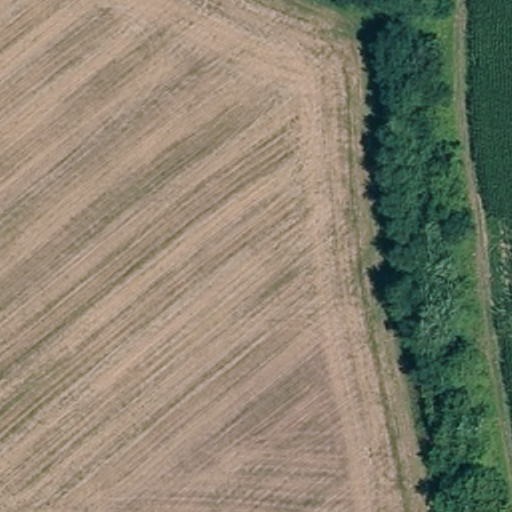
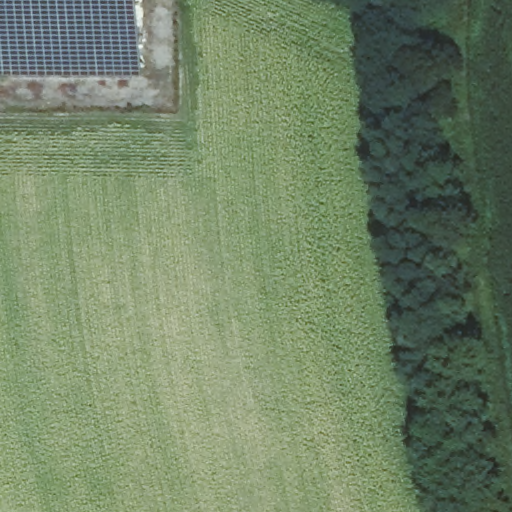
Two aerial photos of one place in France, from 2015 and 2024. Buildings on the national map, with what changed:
new [(143,77),(0,77),(0,0),(144,0),(143,77)]

